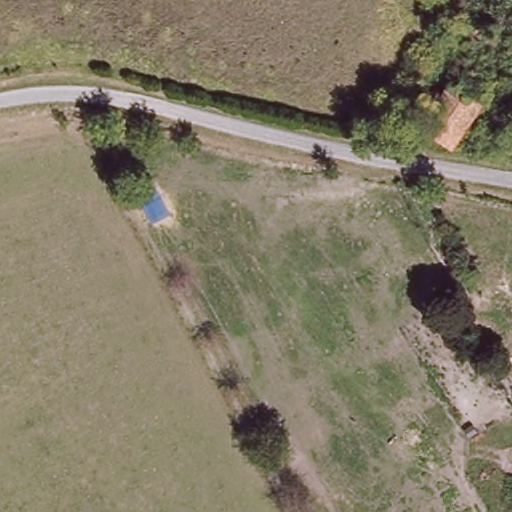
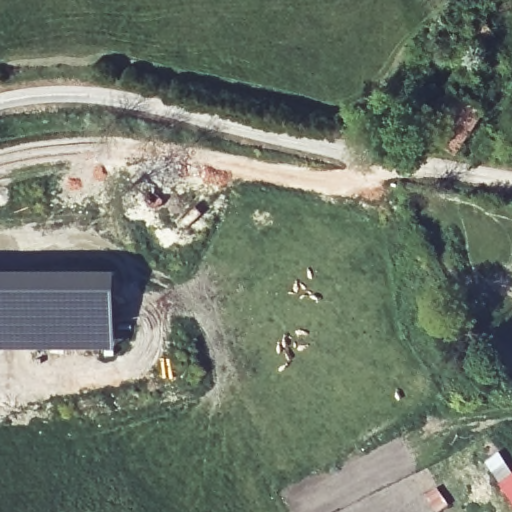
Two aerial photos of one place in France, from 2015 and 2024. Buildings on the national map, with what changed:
unchanged [(463,52),(454,40),(480,23),(488,34),(463,52)]
unchanged [(422,133),(449,91),(478,107),(451,150),(422,133)]
new [(0,272),(116,271),(115,349),(0,349),(0,272)]
new [(504,483),(512,477),(512,495),(504,483)]

